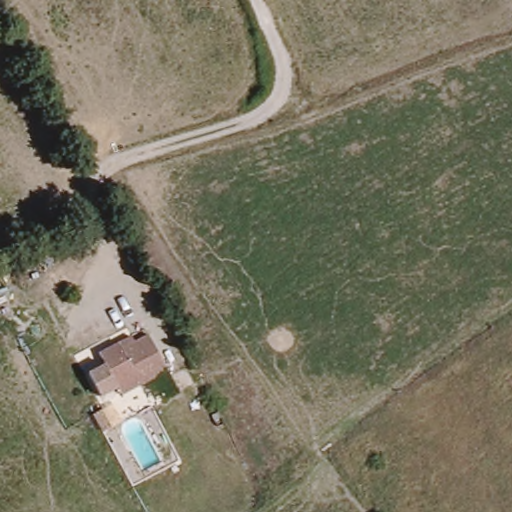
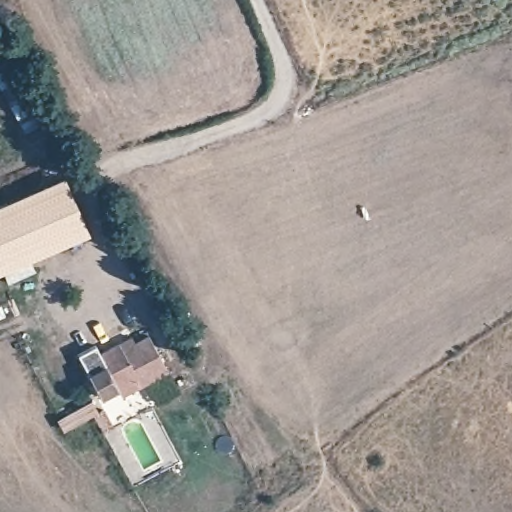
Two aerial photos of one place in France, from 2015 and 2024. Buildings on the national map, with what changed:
new [(90,234),(0,273),(0,204),(64,177),(90,234)]
demolished [(26,279),(18,258),(87,230),(97,247),(26,279)]
unchanged [(115,388),(99,355),(120,343),(136,335),(140,343),(155,336),(173,370),(143,385),(120,397),(115,388)]

